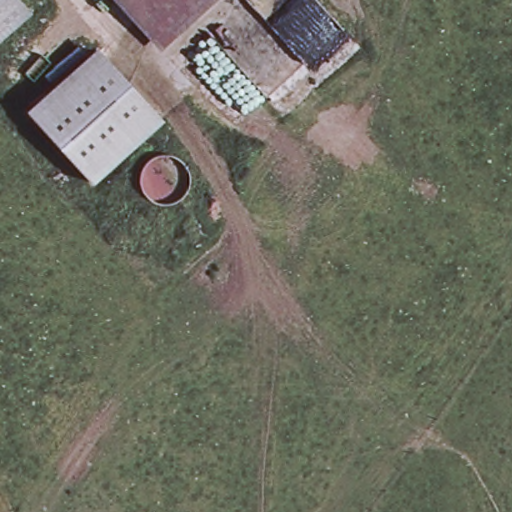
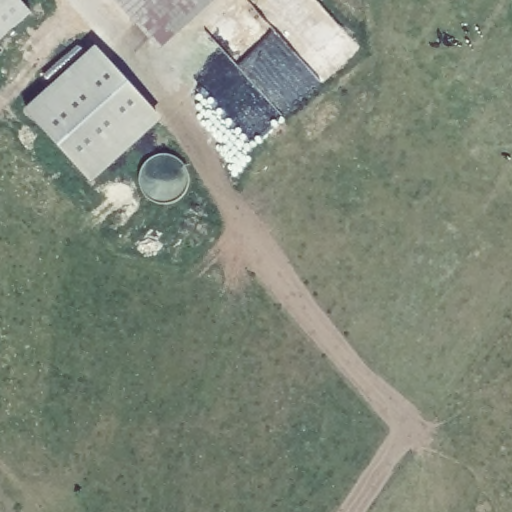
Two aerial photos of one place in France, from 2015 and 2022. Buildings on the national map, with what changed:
unchanged [(30,13),(0,41),(0,0),(18,0),(30,13)]
unchanged [(158,48),(117,0),(211,0),(158,48)]
unchanged [(161,121),(90,185),(26,110),(95,44),(161,121)]

